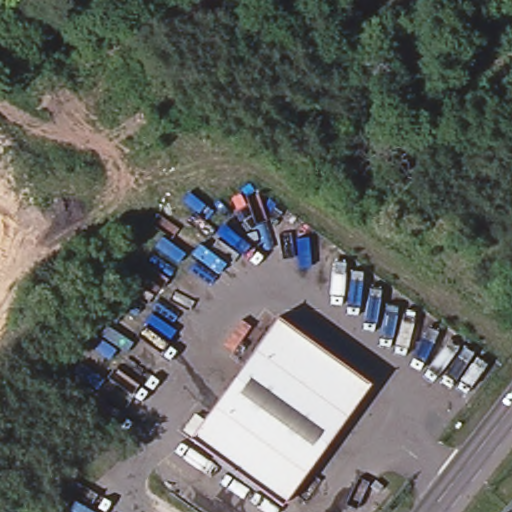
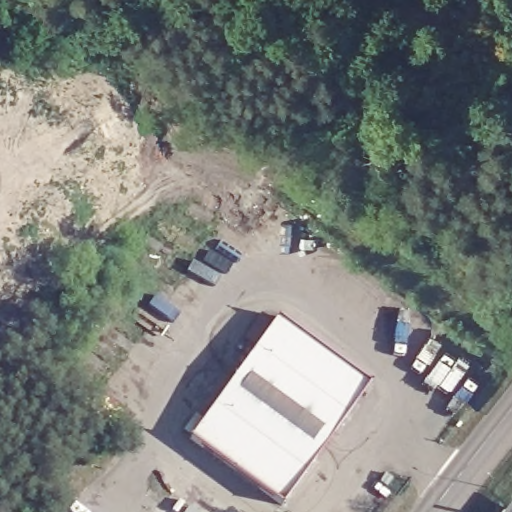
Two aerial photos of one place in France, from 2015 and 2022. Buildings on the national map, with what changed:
unchanged [(369,384),(283,506),(190,442),(277,320),(369,384)]
unchanged [(512,502),(512,512),(504,512),(512,502)]

